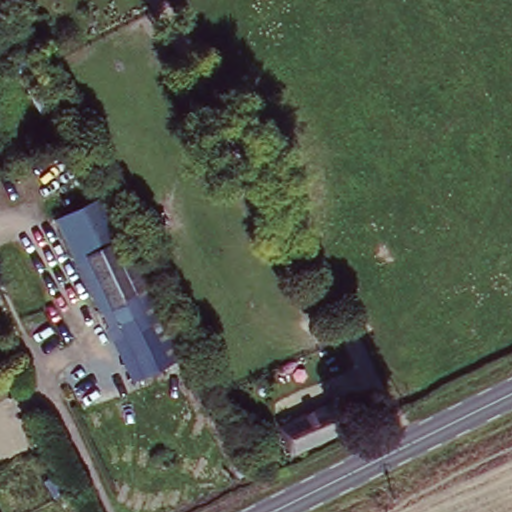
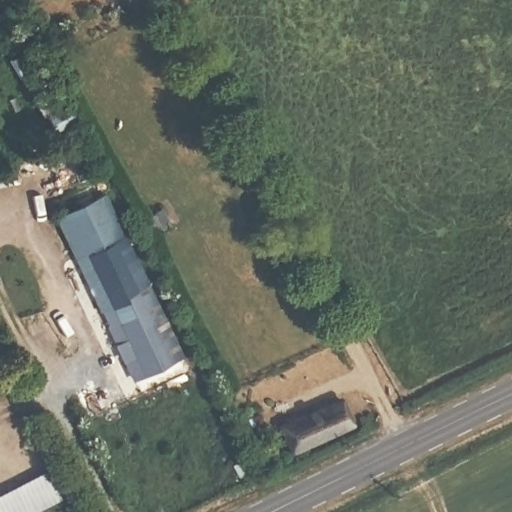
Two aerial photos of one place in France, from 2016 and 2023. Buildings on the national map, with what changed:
unchanged [(11,58),(39,44),(55,72),(26,87),(11,58)]
unchanged [(55,133),(46,117),(44,119),(26,87),(55,72),(71,102),(80,118),(74,122),(55,133)]
unchanged [(155,302),(182,357),(134,380),(108,326),(56,219),(103,195),(155,302)]
unchanged [(341,395),(351,420),(291,446),(279,421),(341,395)]
new [(62,498),(34,512),(0,512),(0,491),(48,467),(62,498)]

